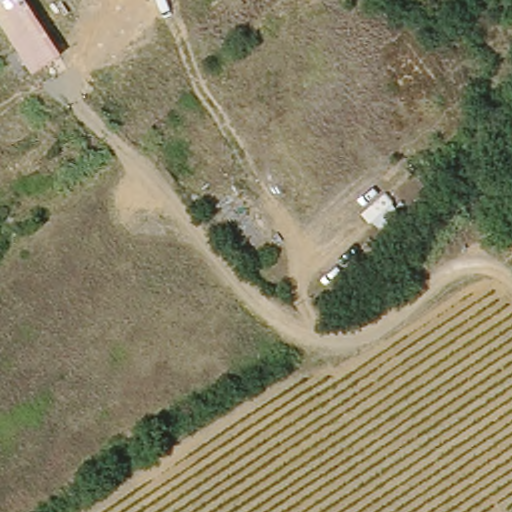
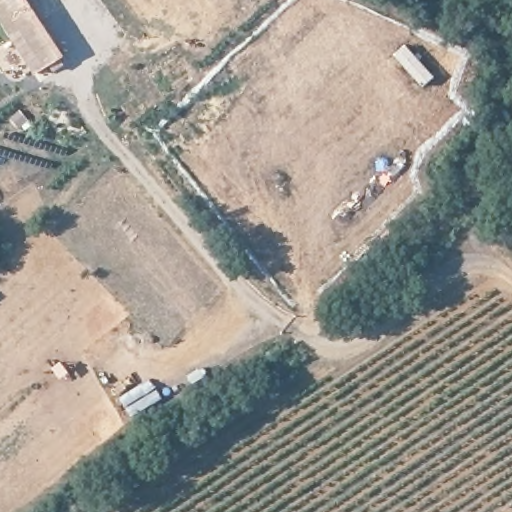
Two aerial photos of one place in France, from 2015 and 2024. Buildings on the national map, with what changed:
unchanged [(24,0),(58,54),(31,73),(0,26),(0,0),(24,0)]

